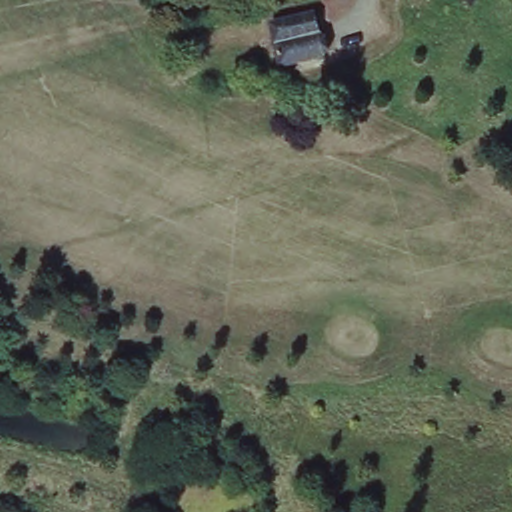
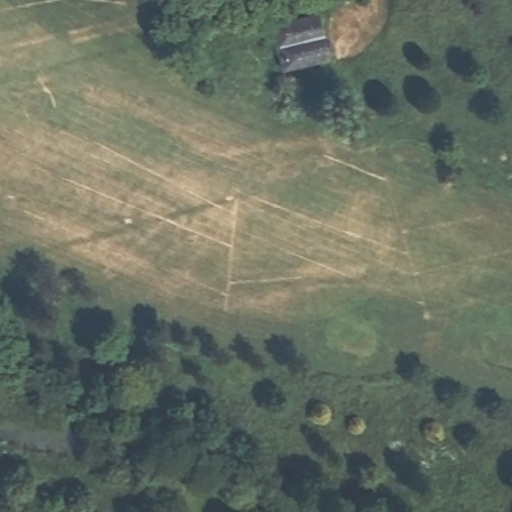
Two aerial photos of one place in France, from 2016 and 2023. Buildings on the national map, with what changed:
unchanged [(330,64),(282,75),(268,15),(315,4),(330,64)]

